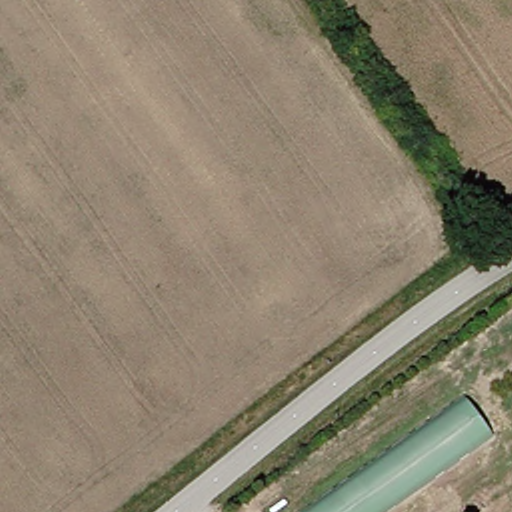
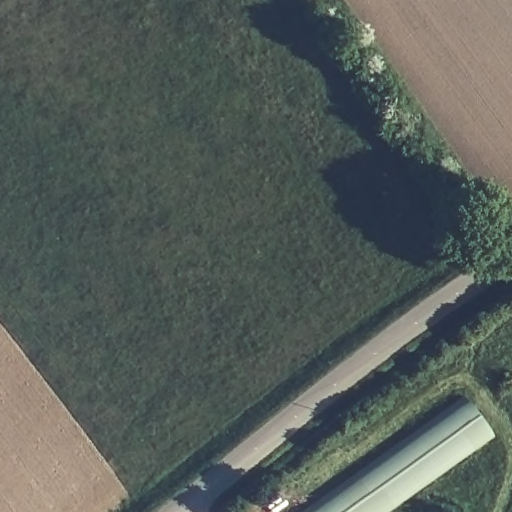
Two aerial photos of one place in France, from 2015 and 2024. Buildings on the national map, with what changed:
unchanged [(467,407),(491,441),(390,512),(317,512),(467,407)]

